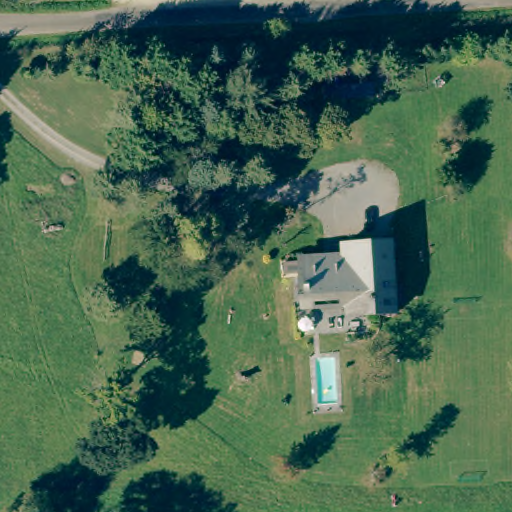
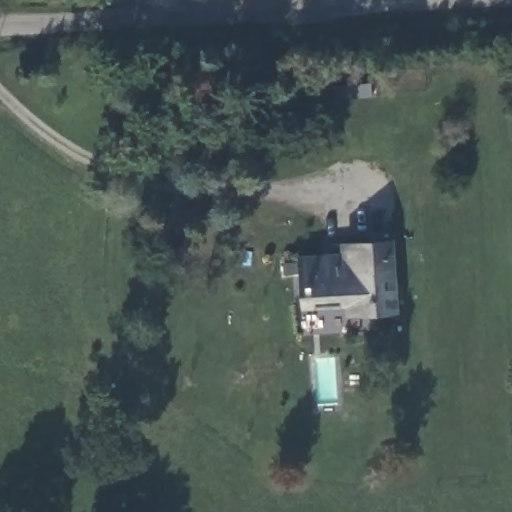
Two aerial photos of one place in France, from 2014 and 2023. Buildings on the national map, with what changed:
unchanged [(391,315),(365,316),(344,317),(343,303),(306,306),(304,280),(298,280),(297,257),(339,255),(338,244),(386,241),(391,315)]

